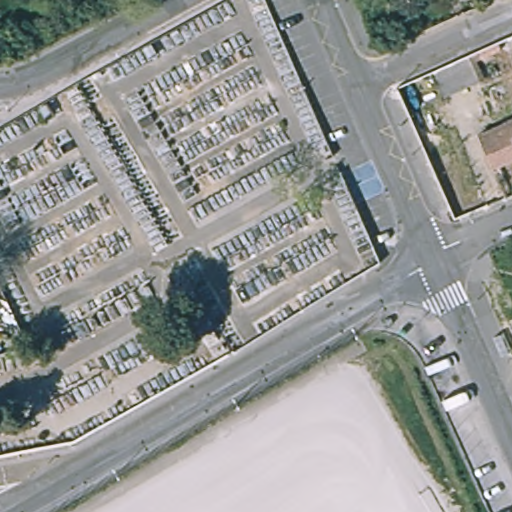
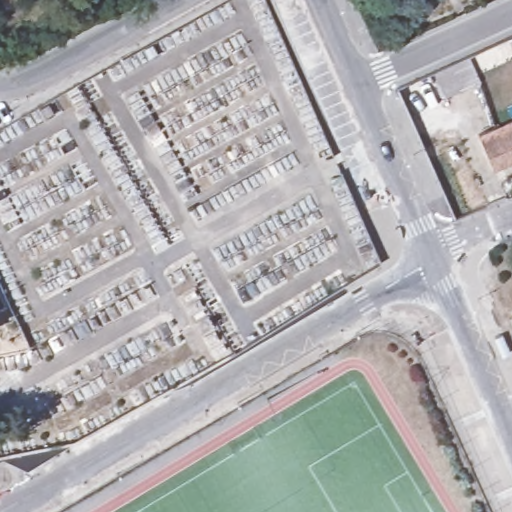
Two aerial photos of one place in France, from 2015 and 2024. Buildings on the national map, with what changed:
unchanged [(512,35),(512,44),(508,37),(512,35)]
unchanged [(478,81),(445,96),(434,71),(467,55),(478,81)]
unchanged [(480,132),(498,125),(500,130),(512,125),(512,158),(492,166),(480,132)]

